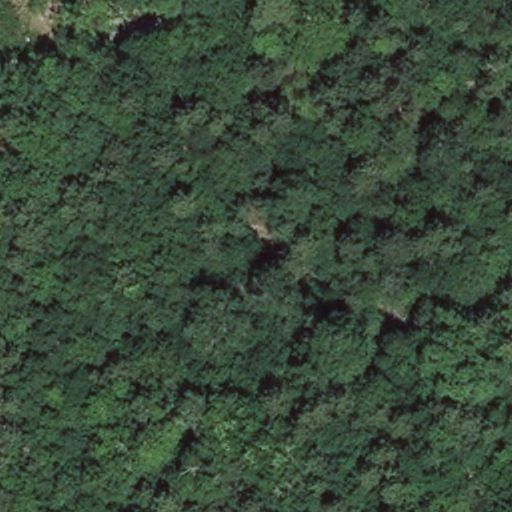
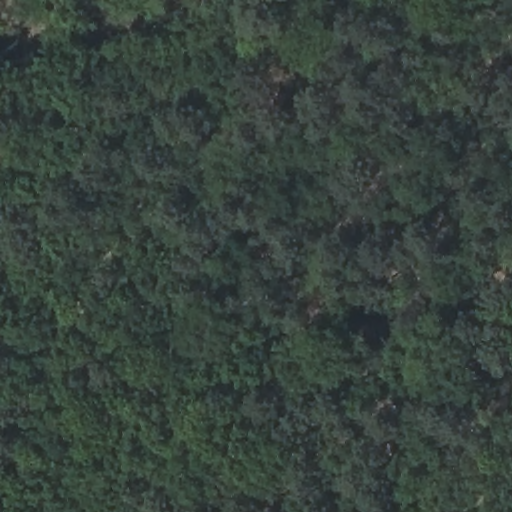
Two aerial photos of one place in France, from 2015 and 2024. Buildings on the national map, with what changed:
[]

